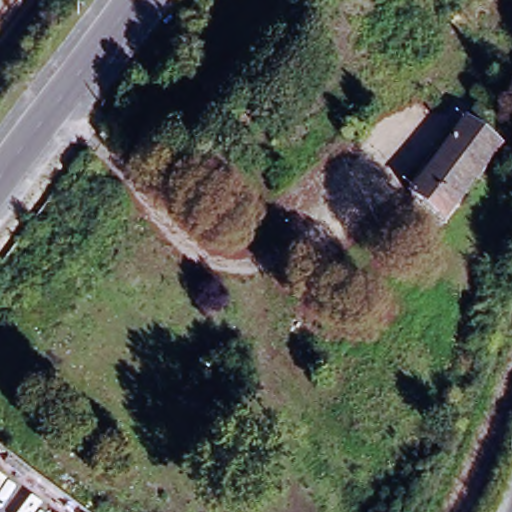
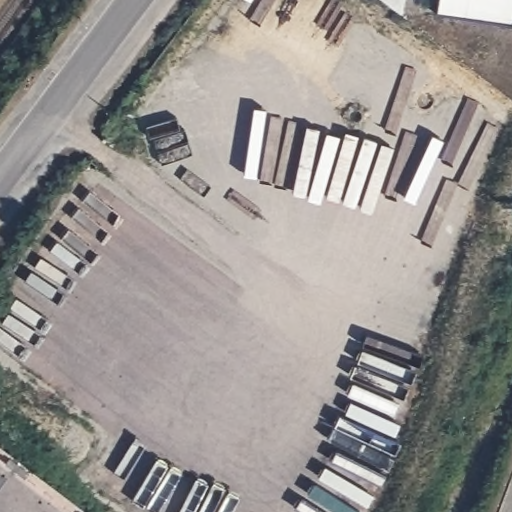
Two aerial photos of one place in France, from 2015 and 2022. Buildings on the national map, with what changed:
new [(435,13),(438,0),(512,0),(512,26),(435,13)]
unchanged [(402,214),(468,124),(505,150),(436,240),(402,214)]

